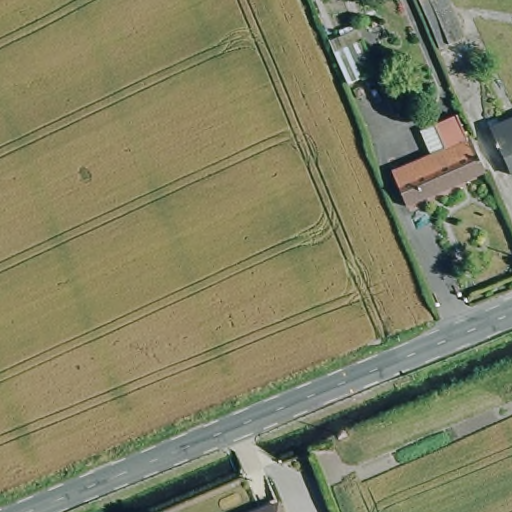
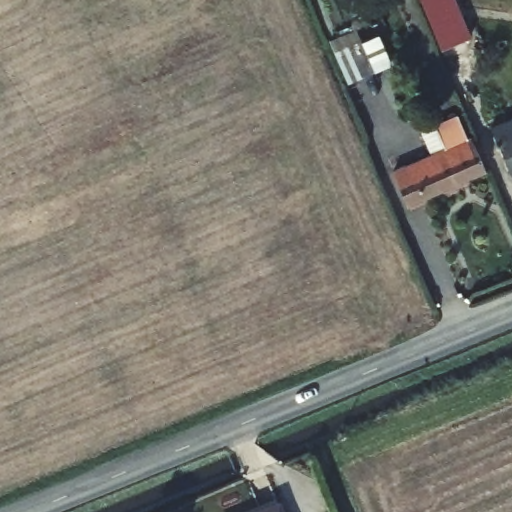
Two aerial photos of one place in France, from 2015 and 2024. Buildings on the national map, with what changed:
new [(419,0),(449,0),(466,39),(440,49),(419,0)]
demolished [(458,38),(446,43),(428,0),(444,0),(458,38)]
unchanged [(370,70),(343,82),(331,52),(358,42),(370,70)]
unchanged [(493,125),(512,117),(512,175),(512,176),(493,125)]
unchanged [(408,206),(394,174),(444,153),(433,129),(456,120),(464,144),(471,142),(485,173),(408,206)]
unchanged [(264,512),(274,508),(276,512),(264,512)]

